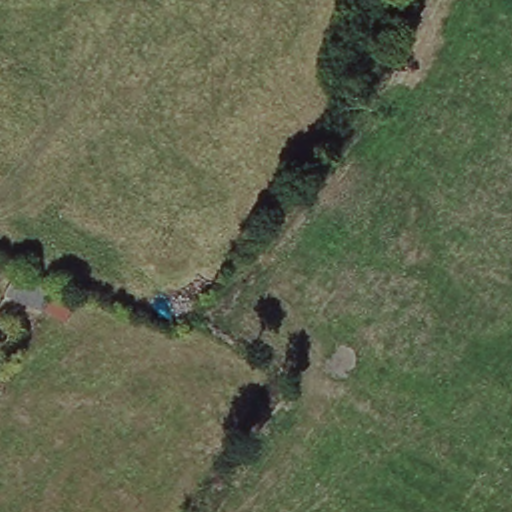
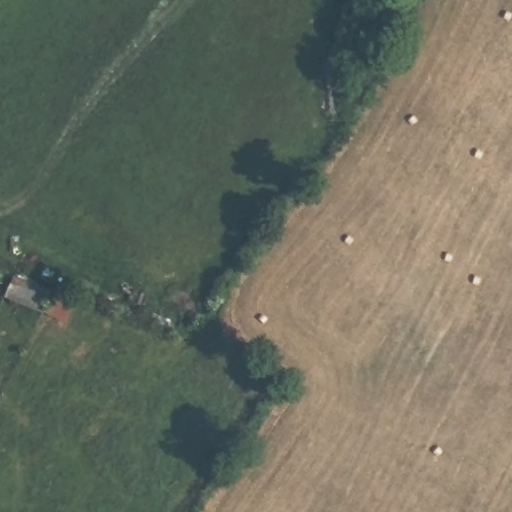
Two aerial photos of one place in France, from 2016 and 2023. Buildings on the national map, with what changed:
unchanged [(15,276),(55,293),(47,315),(7,300),(15,276)]

